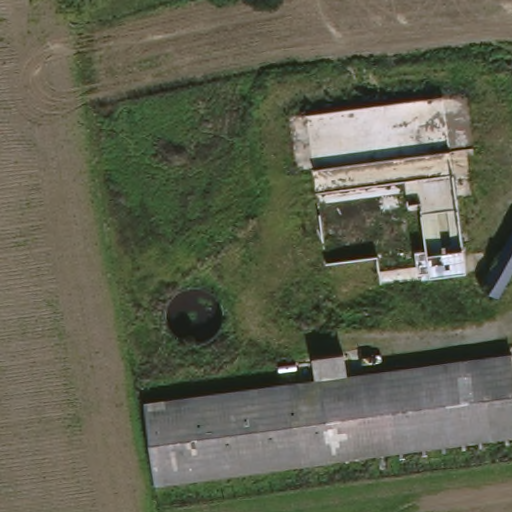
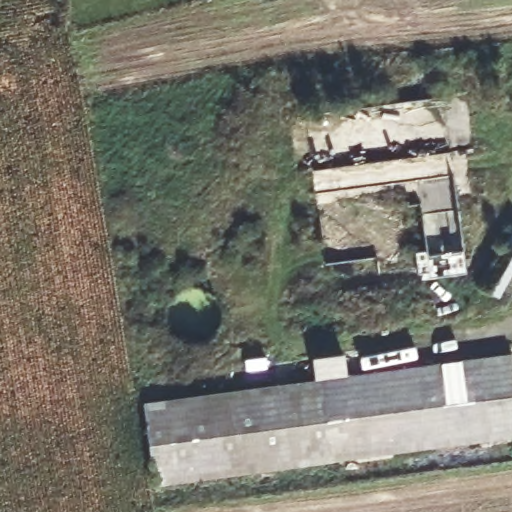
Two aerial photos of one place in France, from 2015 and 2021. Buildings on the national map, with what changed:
unchanged [(482,281),(499,255),(512,235),(512,271),(498,292),(482,281)]
unchanged [(484,358),(512,354),(512,436),(495,438),(346,458),(157,484),(146,404),(281,386),(301,383),(319,380),(316,358),(347,353),(350,376),(484,358)]

